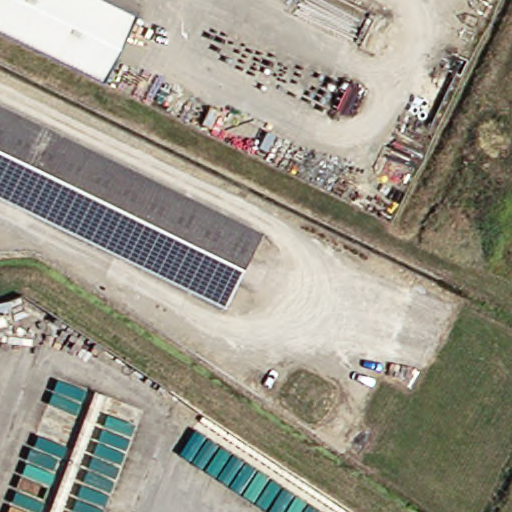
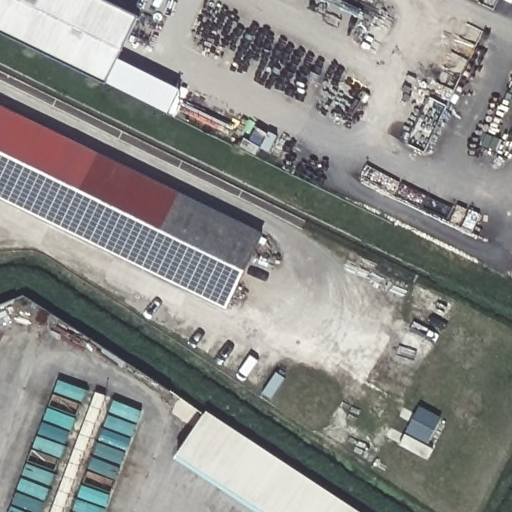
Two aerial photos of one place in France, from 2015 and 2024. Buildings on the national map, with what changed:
unchanged [(106,89),(0,38),(0,0),(94,0),(139,21),(106,89)]
unchanged [(262,235),(227,307),(20,206),(0,197),(0,107),(50,131),(262,235)]
unchanged [(106,396),(63,512),(51,512),(96,394),(106,396)]
new [(208,410),(361,512),(257,512),(175,458),(208,410)]

